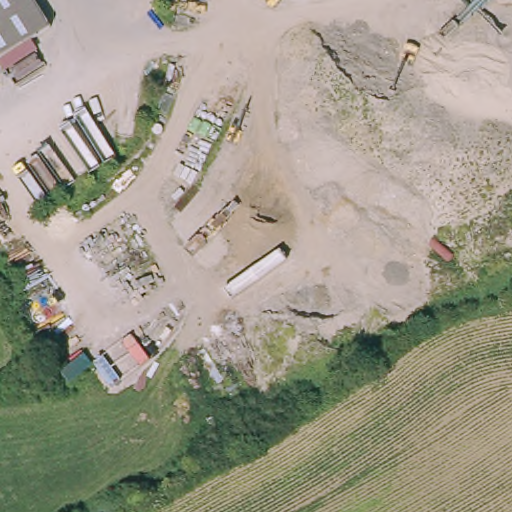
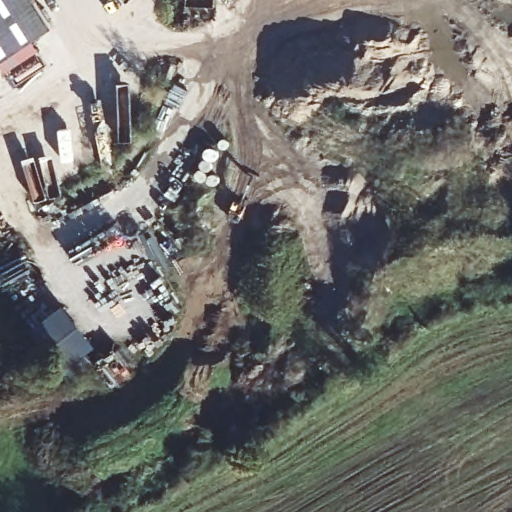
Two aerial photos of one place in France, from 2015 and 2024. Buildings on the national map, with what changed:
unchanged [(0,53),(0,0),(36,0),(50,23),(0,53)]
new [(41,342),(31,328),(64,305),(94,349),(86,354),(93,364),(80,374),(58,342),(41,342)]

